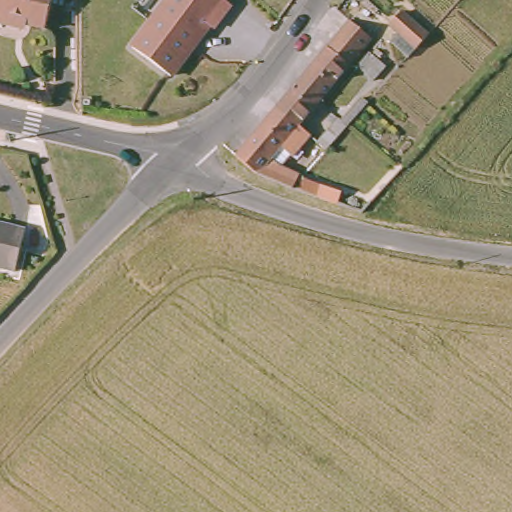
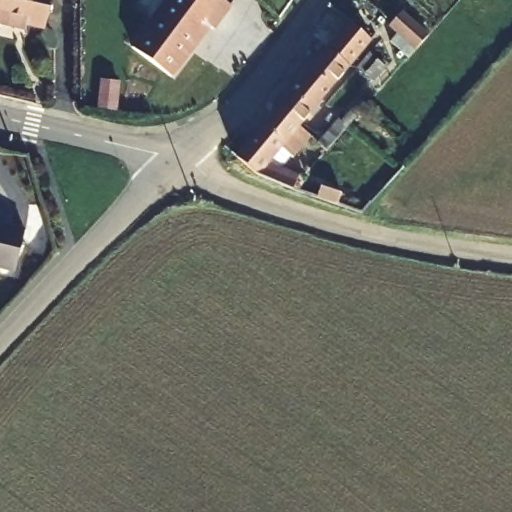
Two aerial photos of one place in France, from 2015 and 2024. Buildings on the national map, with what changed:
unchanged [(21,24),(20,29),(0,25),(0,0),(53,0),(47,29),(21,24)]
unchanged [(168,0),(218,0),(230,11),(210,32),(207,29),(163,75),(128,43),(168,0)]
unchanged [(345,21),(365,39),(293,128),(271,110),(345,21)]
unchanged [(293,128),(295,130),(303,137),(289,153),(278,146),(264,161),(297,173),(292,192),(252,176),(232,156),(271,110),(293,128)]
unchanged [(324,202),(314,199),(320,181),(340,188),(343,189),(337,206),(324,202)]
unchanged [(12,272),(0,269),(0,228),(22,233),(12,272)]

